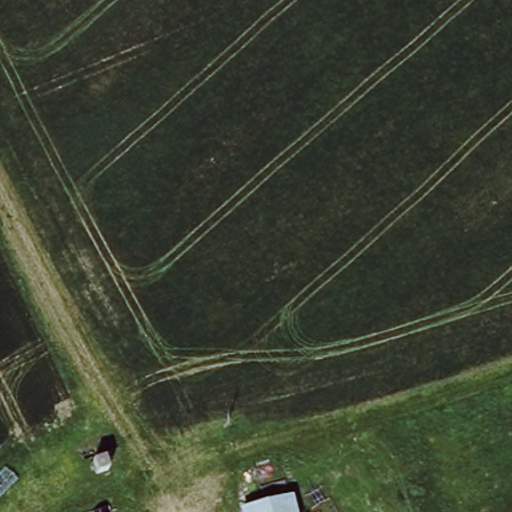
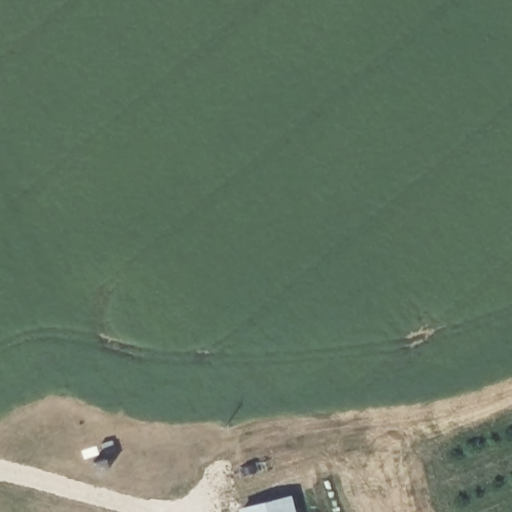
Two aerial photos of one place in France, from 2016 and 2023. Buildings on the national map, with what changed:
unchanged [(244,512),(243,509),(291,497),(295,512),(244,512)]

